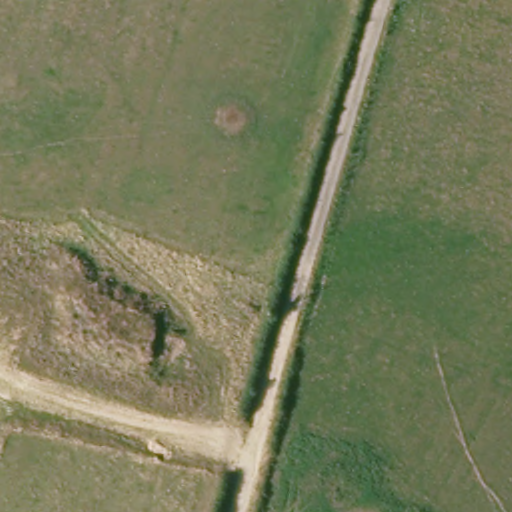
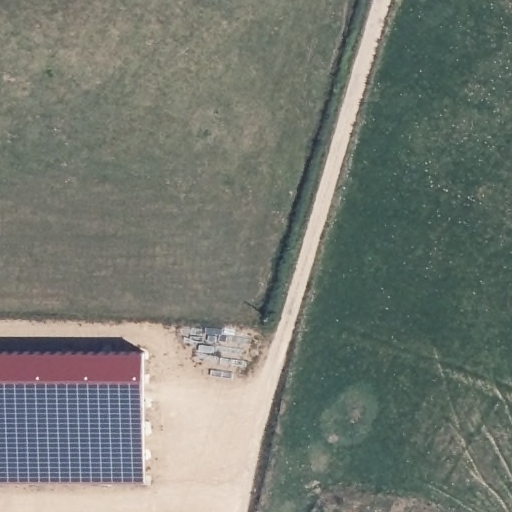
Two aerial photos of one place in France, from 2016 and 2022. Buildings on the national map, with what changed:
new [(140,351),(140,482),(0,481),(0,350),(140,351)]

